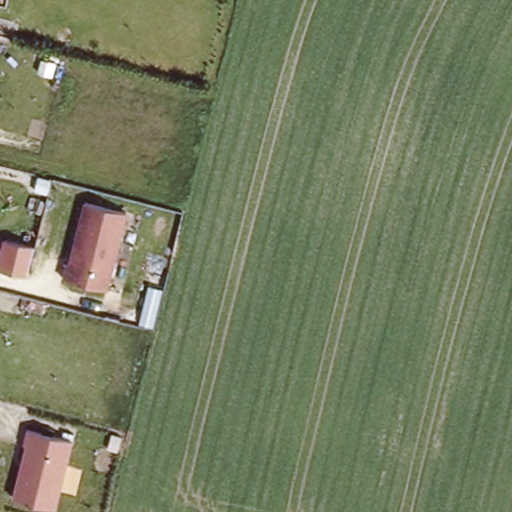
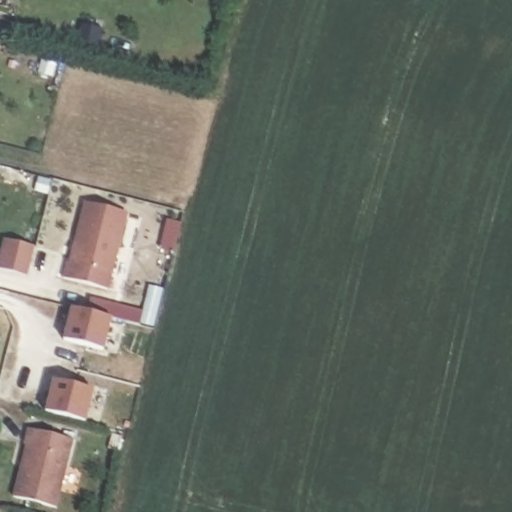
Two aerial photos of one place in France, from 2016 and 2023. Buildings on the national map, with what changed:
unchanged [(128,214),(108,290),(63,278),(82,201),(128,214)]
unchanged [(33,247),(24,277),(0,269),(0,252),(4,240),(33,247)]
new [(71,308),(110,318),(103,350),(63,341),(71,308)]
new [(53,381),(93,391),(84,423),(44,413),(53,381)]
unchanged [(28,428),(73,440),(58,510),(13,497),(28,428)]

